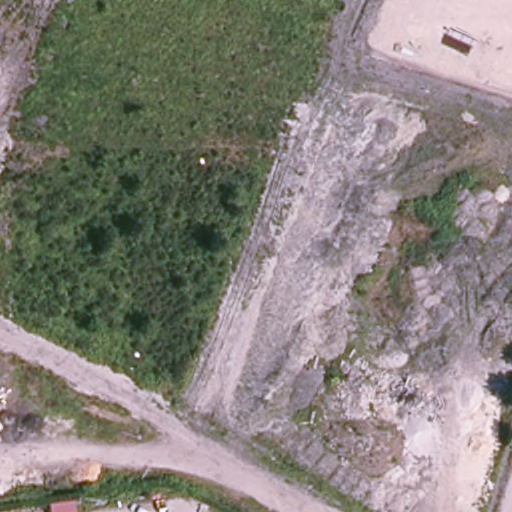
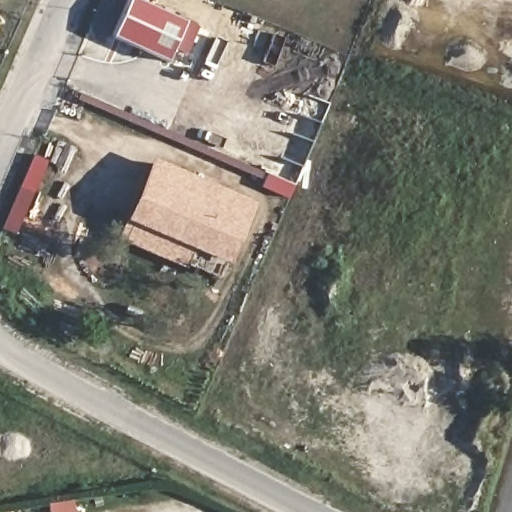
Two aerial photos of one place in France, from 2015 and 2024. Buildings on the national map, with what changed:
new [(186,55),(172,49),(166,62),(111,37),(128,0),(138,0),(198,28),(186,55)]
new [(152,164),(244,202),(221,258),(212,277),(120,239),(152,164)]
new [(219,265),(226,267),(216,286),(210,283),(219,265)]

